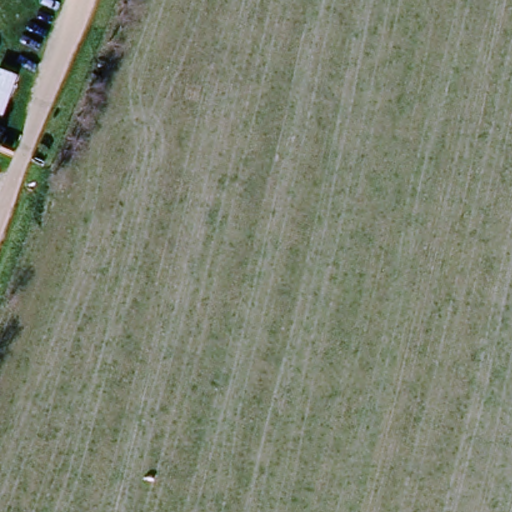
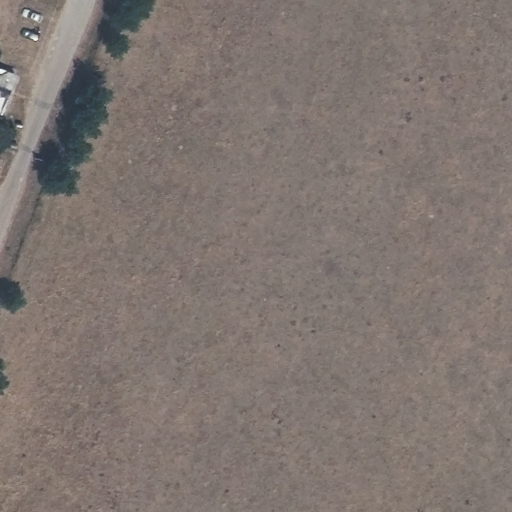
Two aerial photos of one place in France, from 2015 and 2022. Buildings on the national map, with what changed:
unchanged [(0,68),(0,67),(15,72),(9,90),(0,88),(0,68)]

